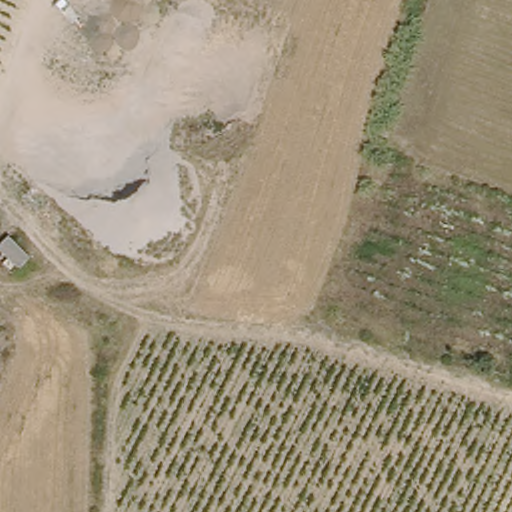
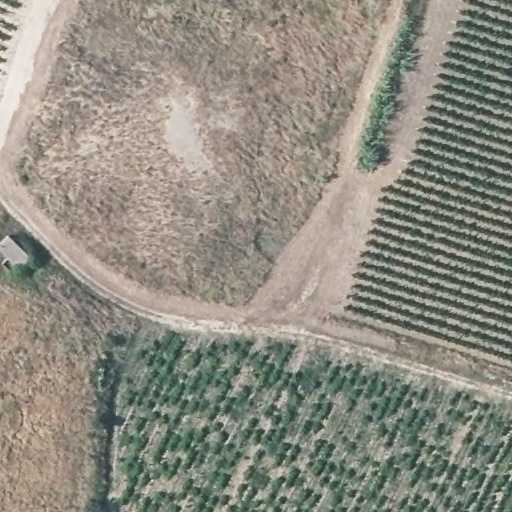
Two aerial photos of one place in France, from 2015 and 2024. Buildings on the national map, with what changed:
unchanged [(30,257),(13,272),(0,258),(0,241),(7,234),(30,257)]

